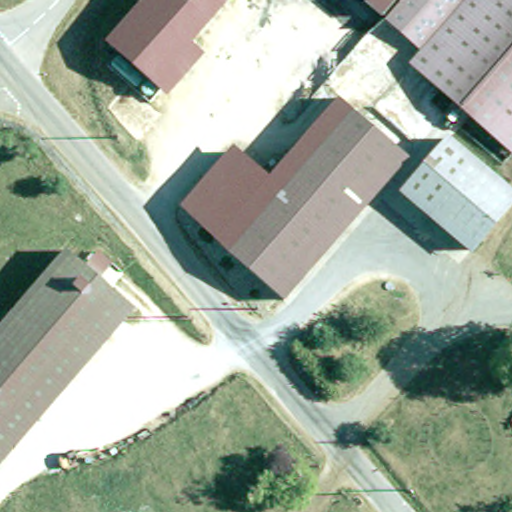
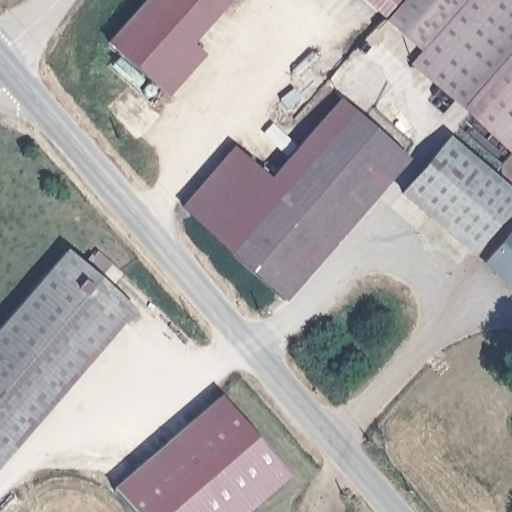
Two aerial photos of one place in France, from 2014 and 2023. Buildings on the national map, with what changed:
unchanged [(173,72),(158,89),(116,51),(105,41),(141,0),(202,0),(153,55),(173,72)]
unchanged [(363,0),(388,0),(377,12),(363,0)]
unchanged [(393,0),(457,0),(417,46),(380,14),(393,0)]
unchanged [(407,58),(417,46),(457,0),(512,0),(512,143),(509,146),(407,58)]
unchanged [(224,248),(348,106),(387,141),(402,153),(279,296),(263,283),(224,248)]
unchanged [(408,193),(452,143),(512,195),(512,210),(475,252),(408,193)]
unchanged [(224,248),(177,207),(230,145),(278,186),(224,248)]
unchanged [(512,228),(512,288),(482,264),(512,228)]
unchanged [(74,250),(92,266),(105,251),(116,260),(103,275),(122,292),(0,433),(0,336),(74,250)]
unchanged [(142,309),(0,473),(0,433),(122,292),(142,309)]
new [(291,476),(248,512),(134,512),(112,488),(220,394),(291,476)]

